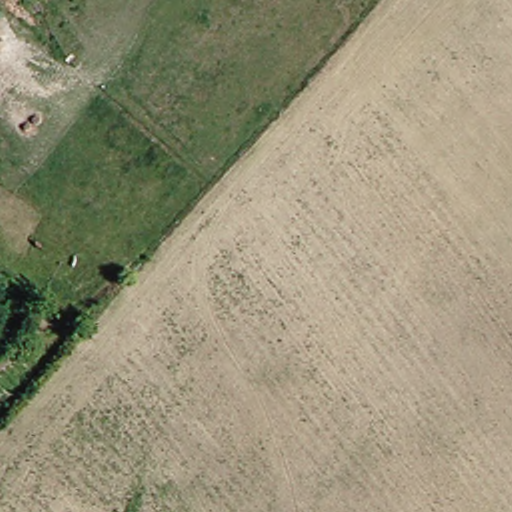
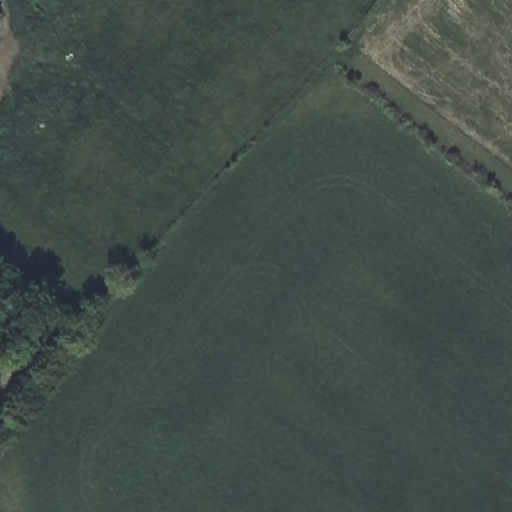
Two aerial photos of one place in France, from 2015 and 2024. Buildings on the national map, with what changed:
unchanged [(4,12),(0,18),(0,9),(4,12)]
unchanged [(3,40),(0,44),(0,38),(3,40)]

